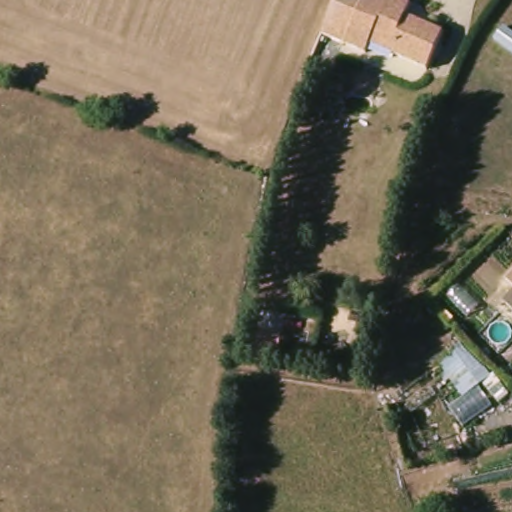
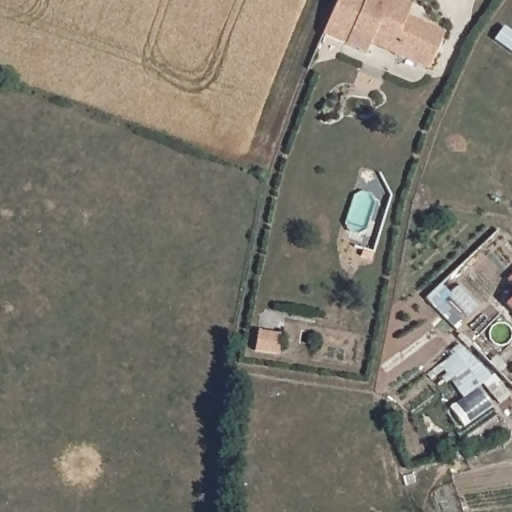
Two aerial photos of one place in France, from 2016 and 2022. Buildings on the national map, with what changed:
unchanged [(367,47),(324,28),(336,0),(413,0),(408,10),(446,27),(430,63),(396,49),(371,38),(367,47)]
unchanged [(512,53),(493,39),(503,27),(512,34),(512,53)]
unchanged [(512,284),(512,287),(510,286),(512,284)]
unchanged [(512,307),(512,310),(510,308),(512,307)]
unchanged [(257,332),(281,337),(277,356),(253,351),(257,332)]
unchanged [(482,370),(461,386),(450,371),(447,374),(440,364),(461,348),(482,370)]

